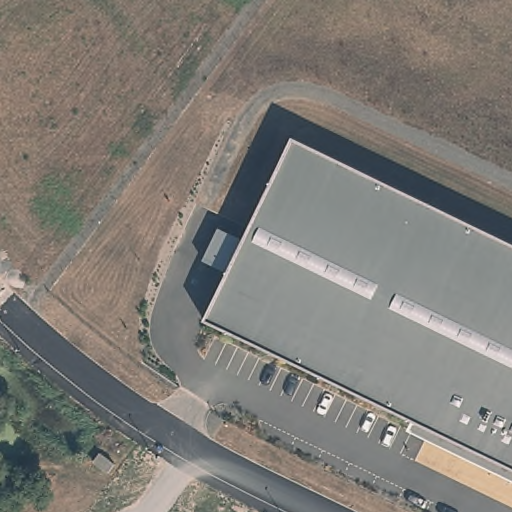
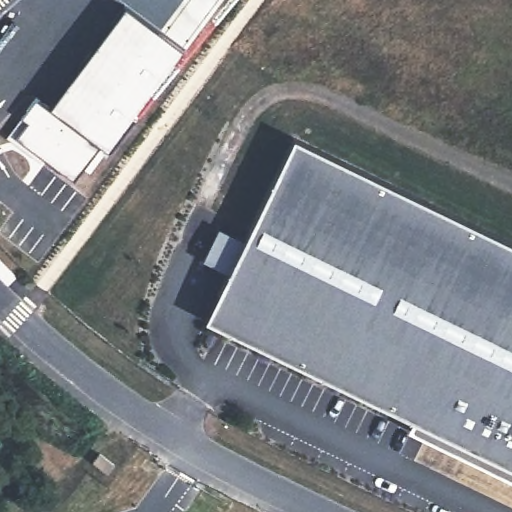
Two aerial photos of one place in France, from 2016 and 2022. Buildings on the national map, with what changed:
new [(182,50),(108,150),(102,146),(72,179),(17,137),(28,121),(22,117),(37,96),(49,107),(125,6),(182,50)]
unchanged [(512,480),(407,431),(411,420),(204,324),(292,140),(512,245),(512,480)]

